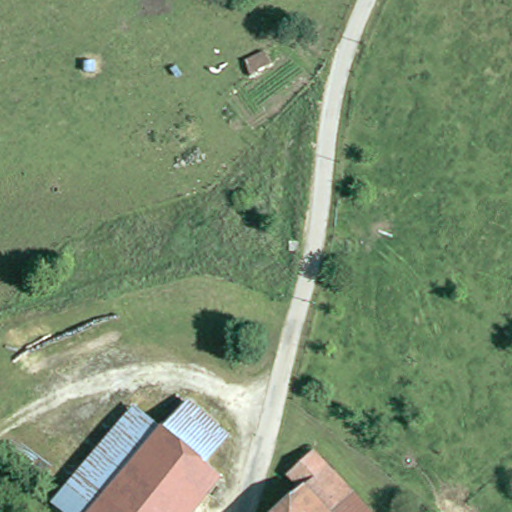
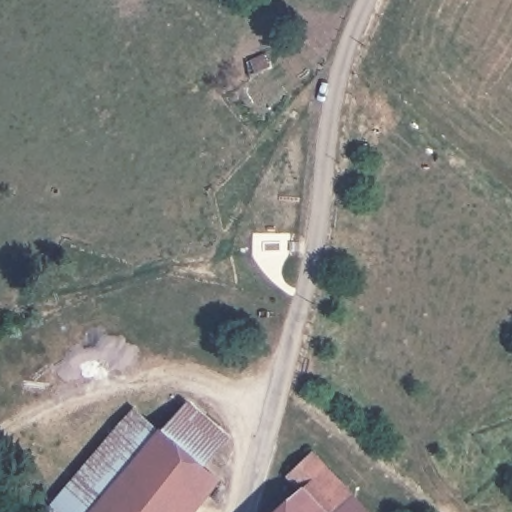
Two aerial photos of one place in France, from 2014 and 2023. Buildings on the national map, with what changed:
unchanged [(167,433),(190,408),(231,442),(208,467),(167,433)]
unchanged [(81,512),(60,512),(55,508),(140,410),(167,433),(96,512),(90,512),(85,508),(81,512)]
unchanged [(227,482),(201,512),(96,512),(167,433),(208,467),(227,482)]
unchanged [(307,493),(292,478),(328,443),(367,483),(354,496),(369,512),(267,512),(287,492),(297,502),(307,493)]
unchanged [(90,512),(81,512),(85,508),(90,512)]

